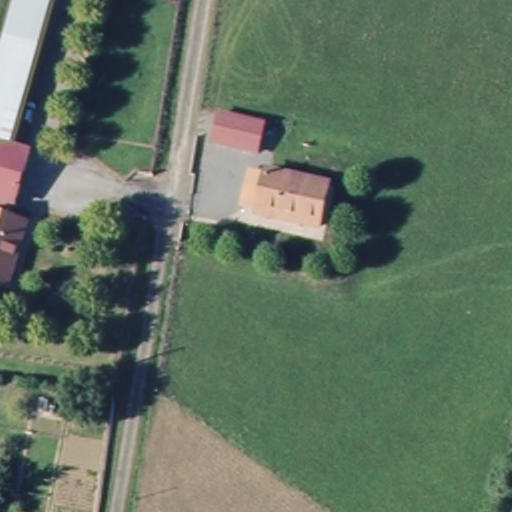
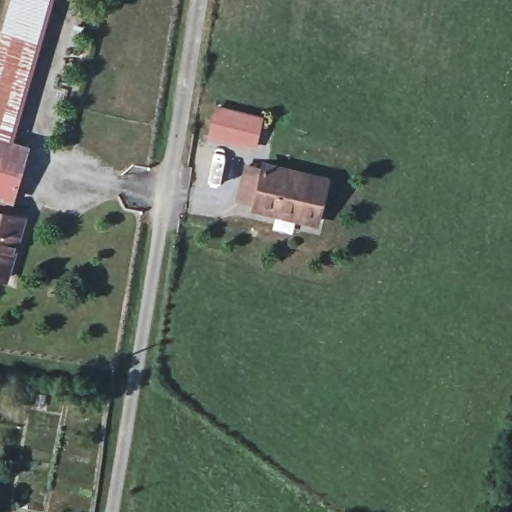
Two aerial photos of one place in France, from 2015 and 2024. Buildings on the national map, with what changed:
unchanged [(14,0),(45,0),(5,146),(0,145),(0,54),(14,0)]
unchanged [(257,144),(213,136),(218,107),(262,114),(257,144)]
unchanged [(30,152),(17,203),(6,201),(0,199),(0,145),(5,146),(30,152)]
unchanged [(260,166),(261,161),(324,172),(314,228),(251,217),(254,199),(239,196),(241,183),(244,163),(260,166)]
unchanged [(4,216),(17,221),(0,280),(0,199),(6,201),(4,216)]

